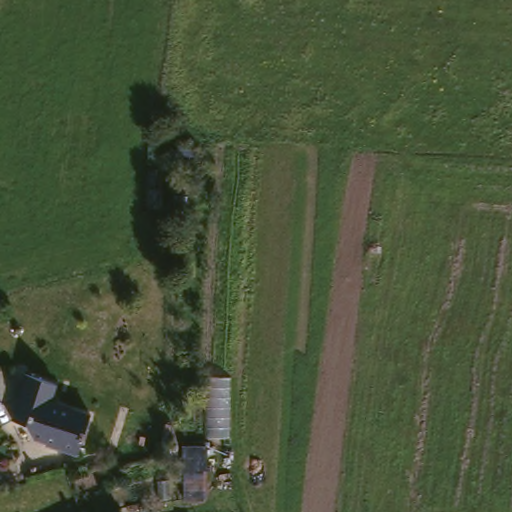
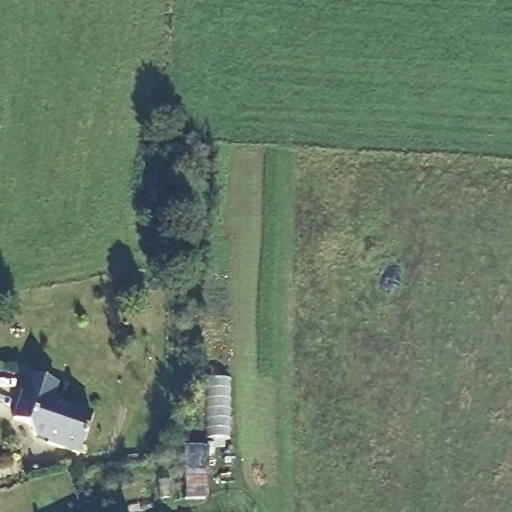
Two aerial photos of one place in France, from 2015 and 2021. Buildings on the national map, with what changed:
unchanged [(59,386),(55,404),(96,415),(86,455),(54,446),(55,439),(46,437),(40,440),(33,428),(19,424),(25,397),(24,396),(29,378),(59,386)]
unchanged [(234,441),(212,442),(210,390),(233,390),(234,441)]
unchanged [(212,449),(213,501),(187,502),(189,450),(212,449)]

